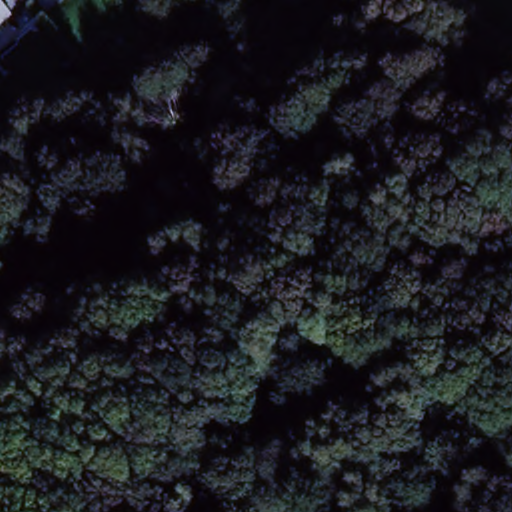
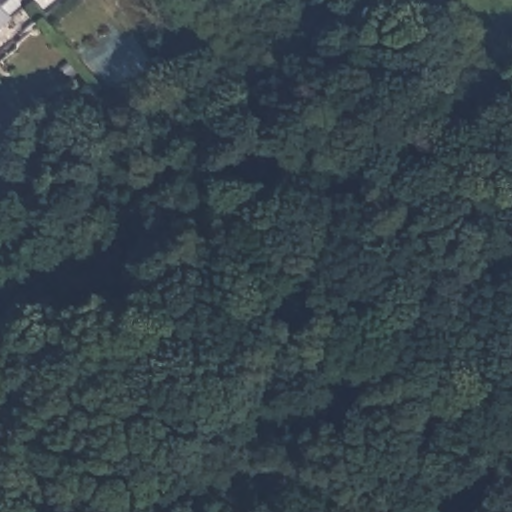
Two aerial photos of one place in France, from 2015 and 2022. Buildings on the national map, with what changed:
unchanged [(0,28),(0,0),(26,0),(29,3),(0,28)]
unchanged [(26,0),(33,0),(29,3),(26,0)]

